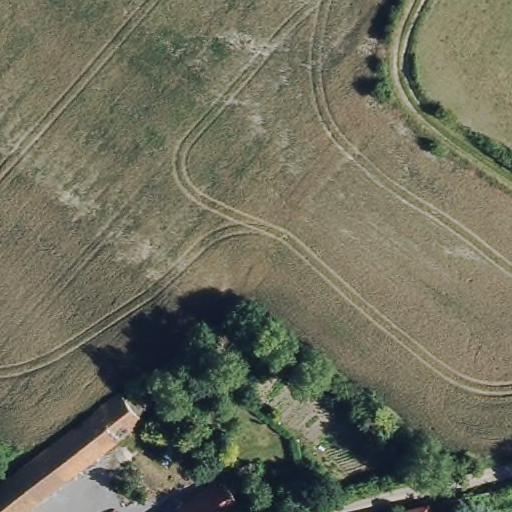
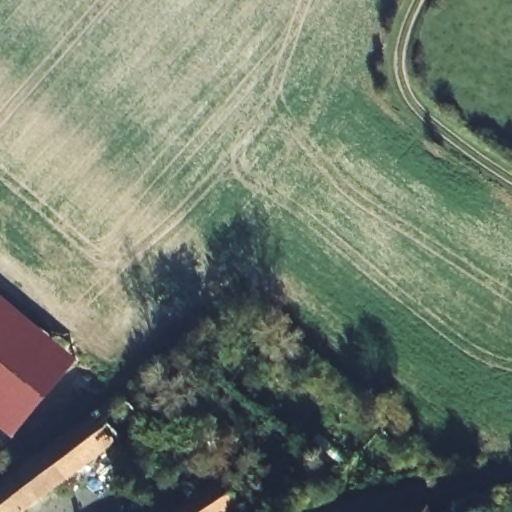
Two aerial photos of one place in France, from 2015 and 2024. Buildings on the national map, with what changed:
new [(11,440),(0,430),(0,296),(76,361),(11,440)]
unchanged [(0,484),(120,391),(125,397),(136,389),(150,406),(138,414),(142,420),(22,512),(0,512),(0,484)]
unchanged [(220,512),(160,512),(230,465),(249,493),(220,512)]
unchanged [(424,500),(427,512),(373,512),(424,500)]

